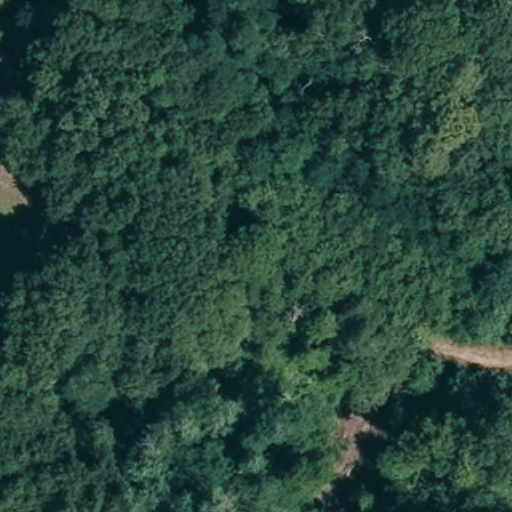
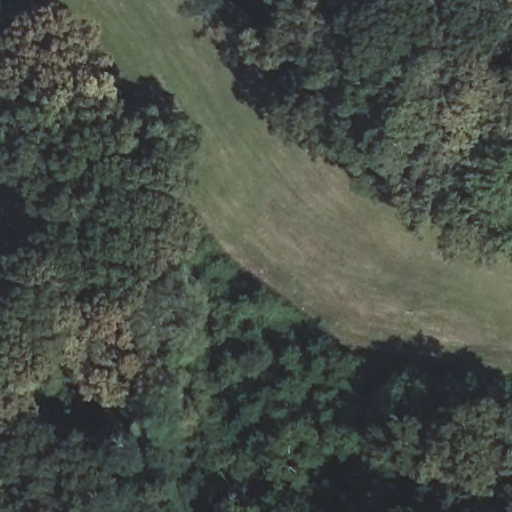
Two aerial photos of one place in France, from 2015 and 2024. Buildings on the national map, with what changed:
[]

